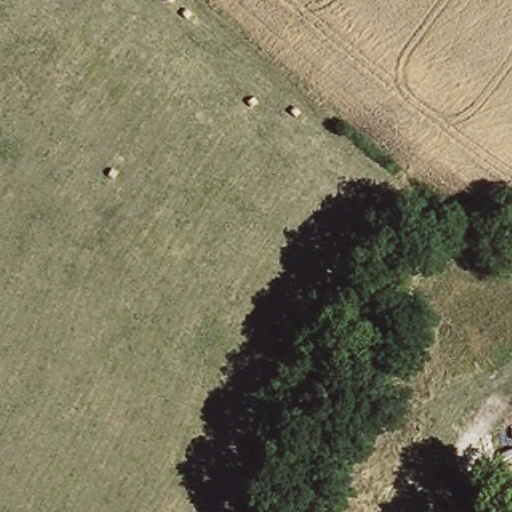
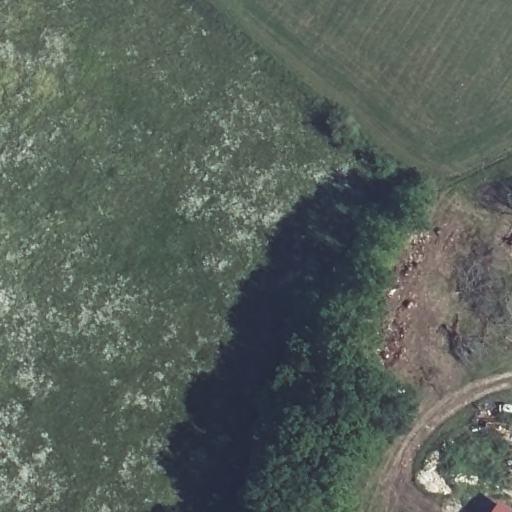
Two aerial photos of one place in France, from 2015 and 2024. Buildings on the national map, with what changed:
new [(512,508),(512,512),(489,512),(499,499),(512,508)]

